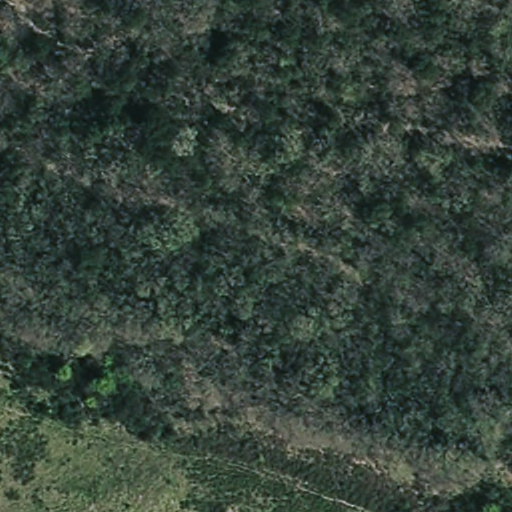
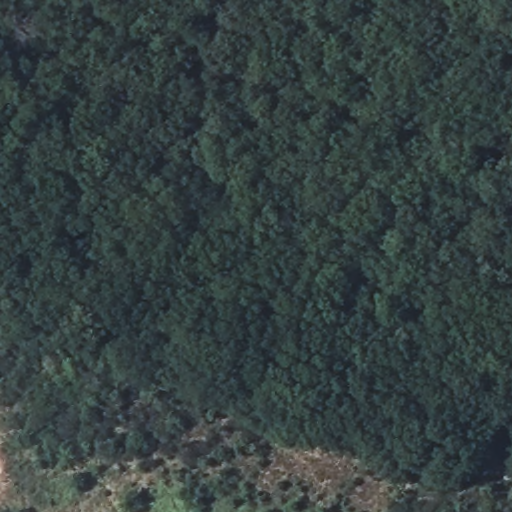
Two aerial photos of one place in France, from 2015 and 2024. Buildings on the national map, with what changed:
[]

